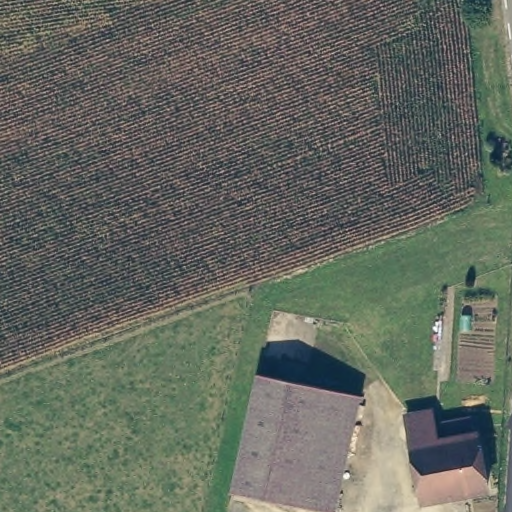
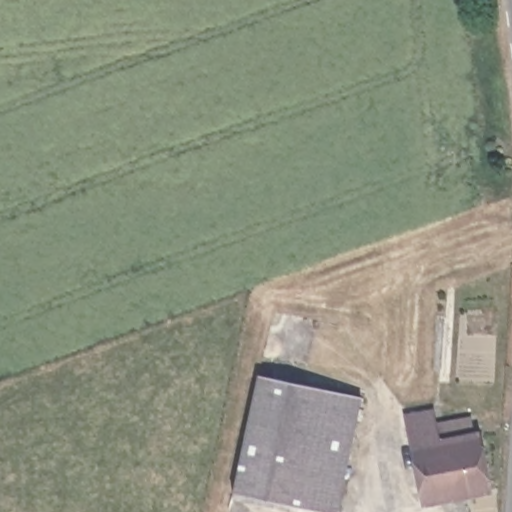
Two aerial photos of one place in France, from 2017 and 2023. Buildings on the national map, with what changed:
unchanged [(362,398),(335,512),(234,488),(257,374),(362,398)]
unchanged [(429,410),(432,421),(471,415),(473,429),(477,430),(486,485),(460,489),(461,499),(449,500),(446,492),(419,496),(401,414),(429,410)]

